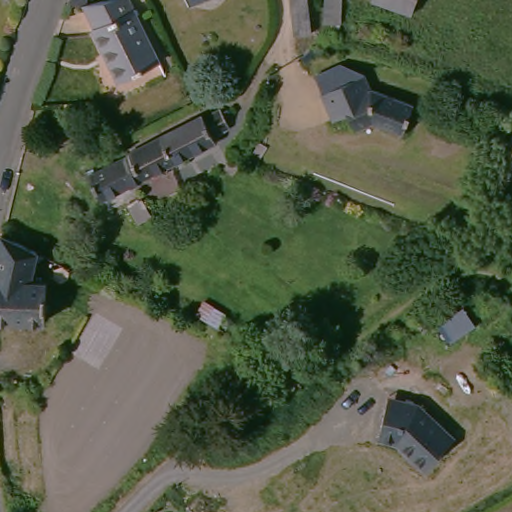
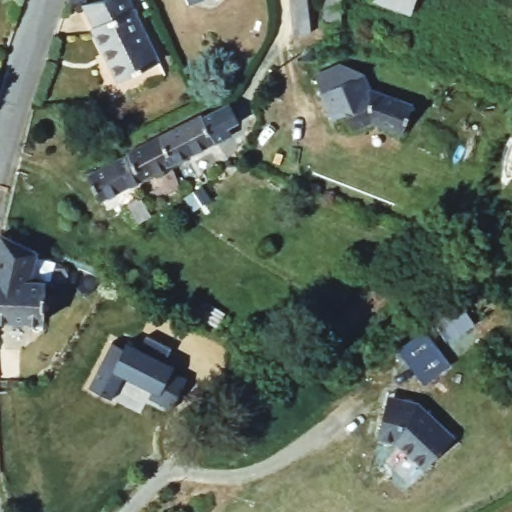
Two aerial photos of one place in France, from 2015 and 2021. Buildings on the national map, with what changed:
unchanged [(68,7),(71,0),(88,0),(84,11),(68,7)]
unchanged [(94,35),(86,11),(107,5),(121,0),(123,0),(153,69),(112,87),(108,76),(91,36),(94,35)]
unchanged [(182,0),(197,0),(183,5),(182,0)]
unchanged [(291,39),(285,0),(302,0),(308,36),(291,39)]
unchanged [(323,26),(323,0),(339,0),(338,27),(323,26)]
unchanged [(371,5),(372,0),(416,0),(411,17),(371,5)]
unchanged [(411,111),(401,139),(370,128),(355,134),(348,118),(333,124),(321,98),(323,96),(315,80),(341,69),(361,80),(368,96),(411,111)]
unchanged [(210,146),(166,168),(150,140),(196,116),(199,124),(218,115),(224,130),(207,139),(210,146)]
unchanged [(93,205),(80,178),(105,165),(122,156),(121,155),(150,140),(166,168),(119,192),(114,194),(93,205)]
unchanged [(141,224),(132,228),(128,230),(121,215),(119,211),(132,205),(141,224)]
unchanged [(66,315),(72,317),(71,323),(0,319),(0,240),(29,256),(29,283),(66,286),(66,315)]
new [(437,324),(462,360),(436,379),(411,342),(437,324)]
new [(127,351),(129,345),(143,352),(150,339),(160,345),(174,353),(167,366),(176,371),(173,376),(188,384),(172,412),(151,400),(154,394),(125,377),(113,400),(91,388),(116,344),(127,351)]
unchanged [(410,406),(448,447),(416,477),(392,450),(372,444),(383,409),(400,414),(403,404),(410,406)]

